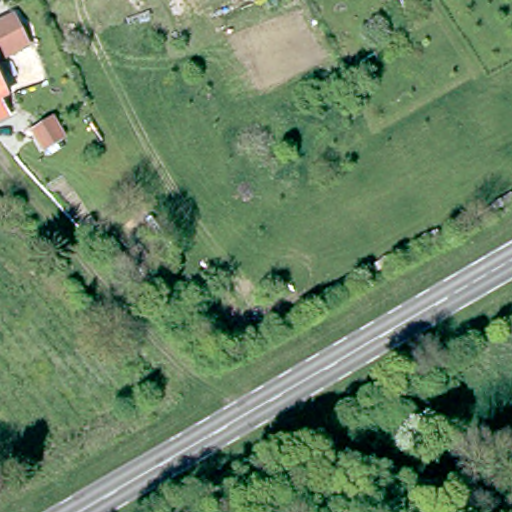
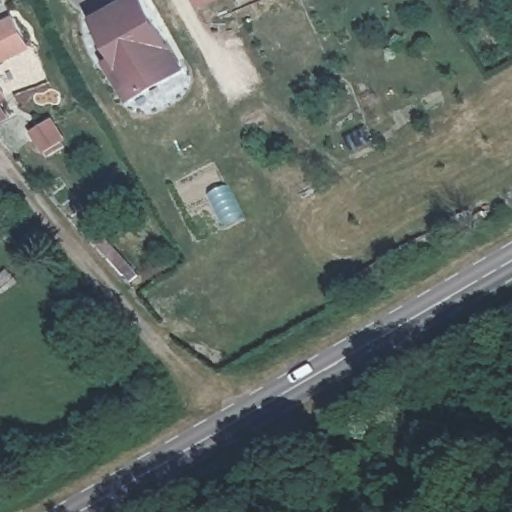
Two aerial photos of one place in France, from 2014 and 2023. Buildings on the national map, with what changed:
new [(128,102),(103,60),(111,56),(91,15),(118,0),(147,0),(187,68),(128,102)]
new [(193,0),(208,0),(194,5),(193,0)]
unchanged [(0,58),(0,21),(7,18),(15,14),(29,44),(21,48),(0,58)]
unchanged [(0,98),(0,80),(7,94),(0,98)]
unchanged [(67,129),(74,141),(73,143),(65,147),(54,154),(43,136),(50,132),(64,124),(67,129)]

